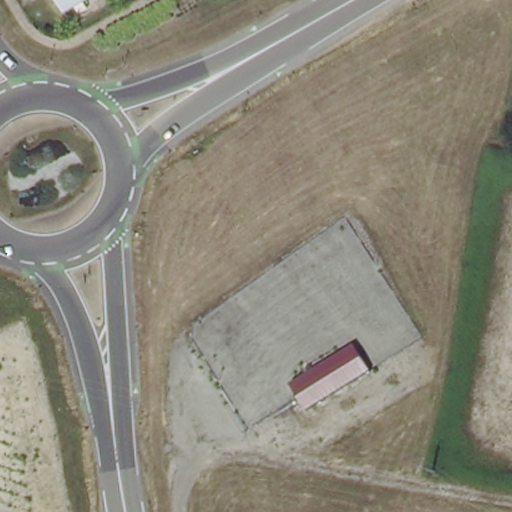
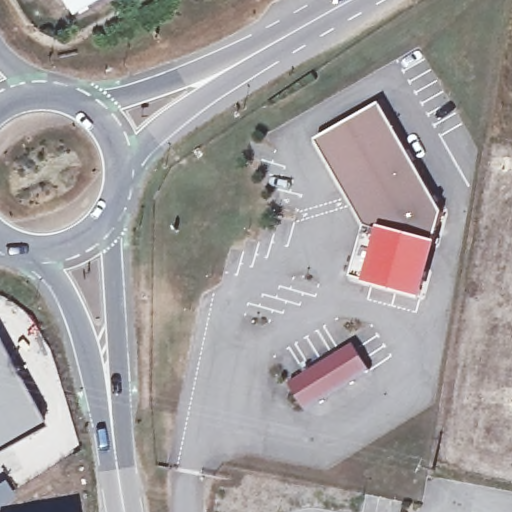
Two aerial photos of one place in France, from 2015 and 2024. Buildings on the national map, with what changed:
unchanged [(58,0),(86,0),(66,12),(58,0)]
new [(356,147),(344,126),(382,104),(444,213),(420,295),(370,282),(384,231),(341,155),(356,147)]
new [(344,126),(356,147),(341,155),(384,231),(370,282),(353,277),(367,225),(318,140),(344,126)]
new [(0,444),(0,341),(43,421),(0,444)]
unchanged [(307,412),(291,387),(355,342),(374,371),(307,412)]
new [(16,494),(0,504),(0,480),(4,477),(16,494)]

